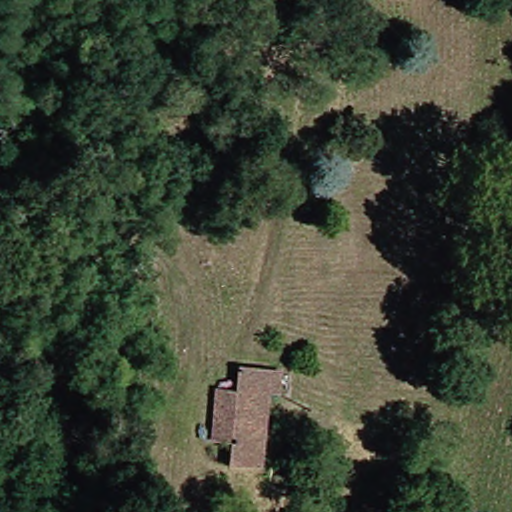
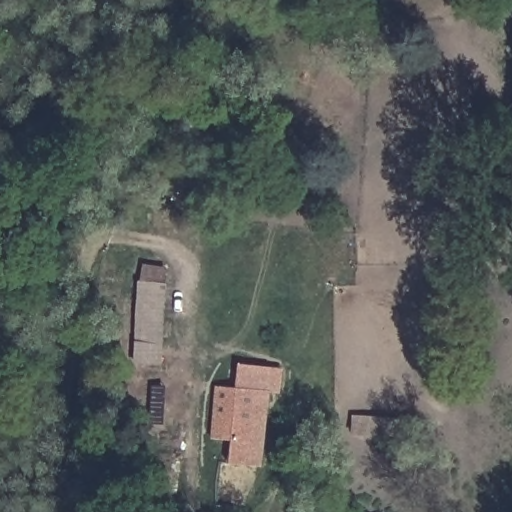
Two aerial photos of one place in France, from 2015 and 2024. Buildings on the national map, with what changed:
new [(163,367),(134,366),(138,281),(168,283),(163,367)]
unchanged [(227,439),(207,437),(214,384),(232,386),(235,362),(269,367),(282,368),(278,402),(265,401),(256,467),(224,463),(227,439)]
unchanged [(127,487),(135,485),(139,482),(144,502),(128,511),(127,487)]

